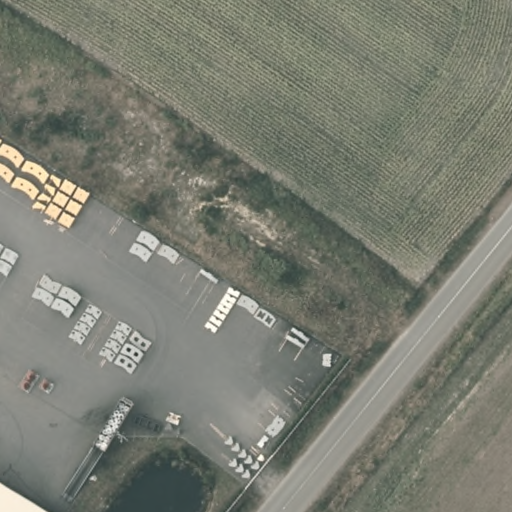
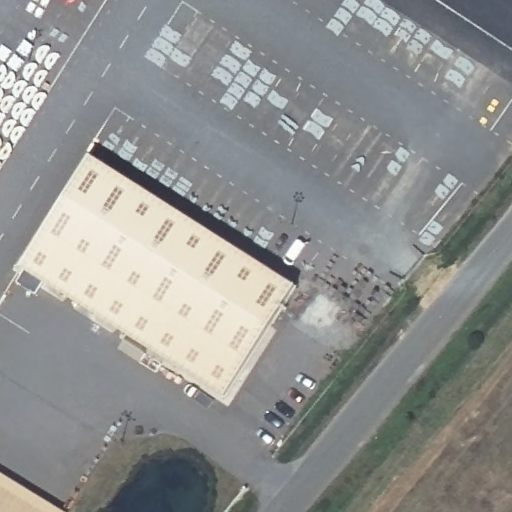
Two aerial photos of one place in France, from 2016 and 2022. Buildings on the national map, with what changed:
new [(225,398),(21,267),(91,157),(295,286),(225,398)]
unchanged [(0,512),(0,486),(43,512),(0,512)]

